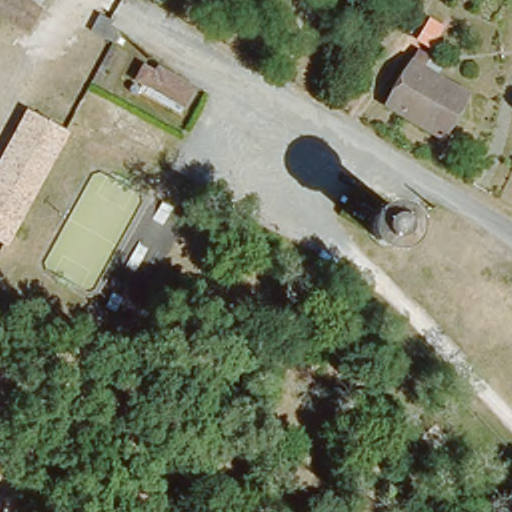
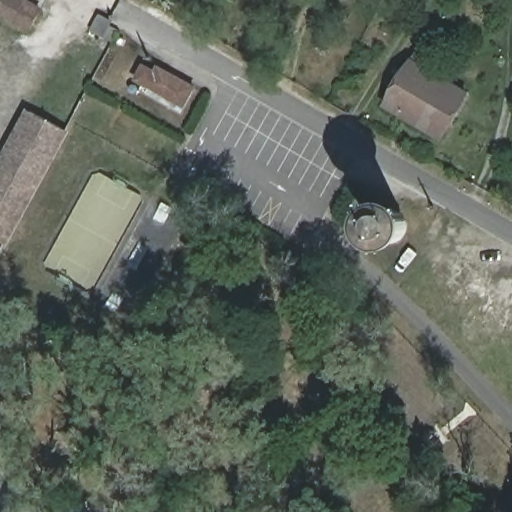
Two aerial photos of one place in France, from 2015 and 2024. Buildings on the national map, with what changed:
unchanged [(25,26),(0,12),(0,0),(26,0),(35,5),(25,26)]
unchanged [(463,91),(439,133),(386,101),(410,59),(463,91)]
unchanged [(199,95),(189,112),(143,86),(150,72),(161,80),(164,75),(199,95)]
unchanged [(0,186),(38,116),(73,135),(11,247),(0,241),(0,186)]

